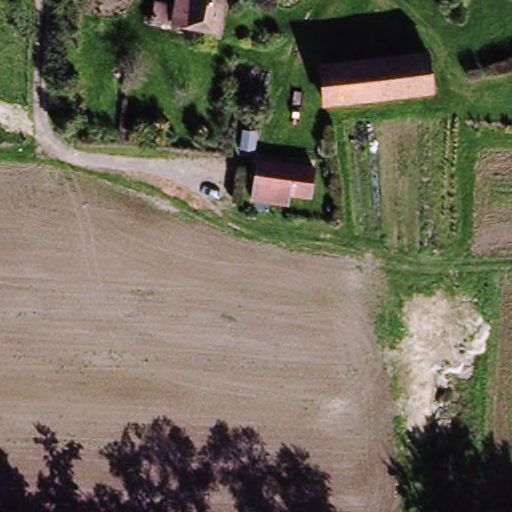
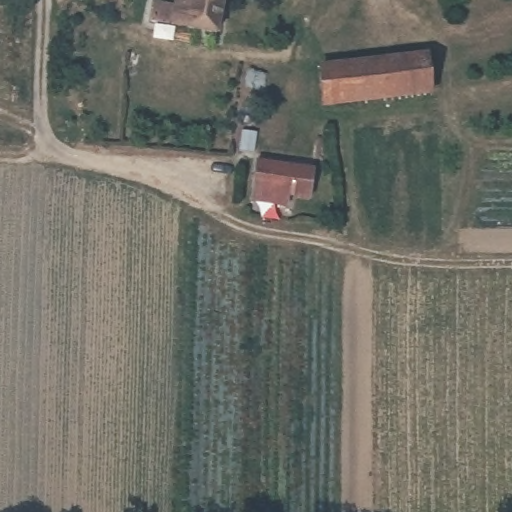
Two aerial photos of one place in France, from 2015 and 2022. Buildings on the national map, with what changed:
unchanged [(147,15),(150,17),(153,11),(171,15),(173,0),(223,0),(217,40),(145,26),(147,15)]
unchanged [(431,97),(323,106),(319,72),(427,62),(431,97)]
unchanged [(311,176),(308,202),(285,198),(286,190),(254,185),(257,169),(311,176)]

